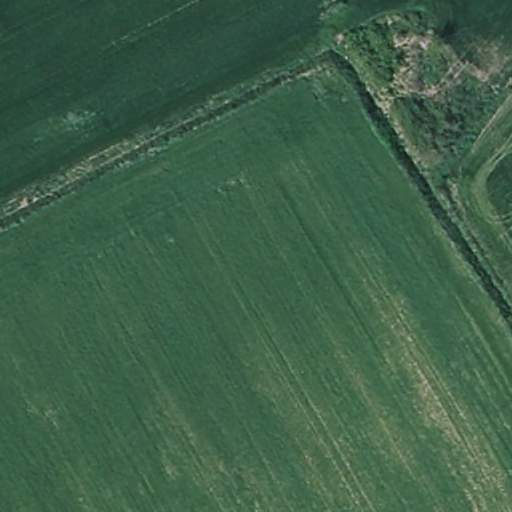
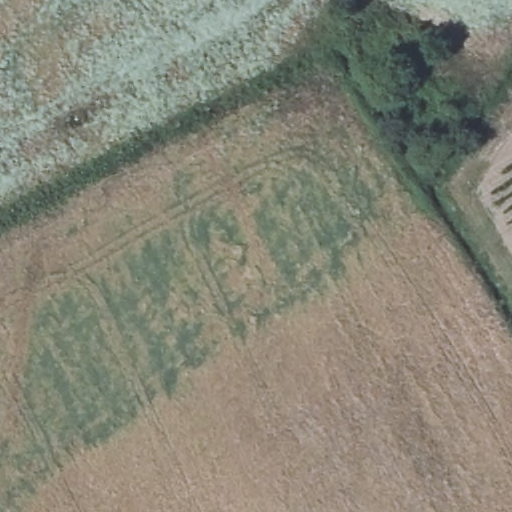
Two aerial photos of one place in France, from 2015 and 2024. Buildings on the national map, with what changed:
[]

